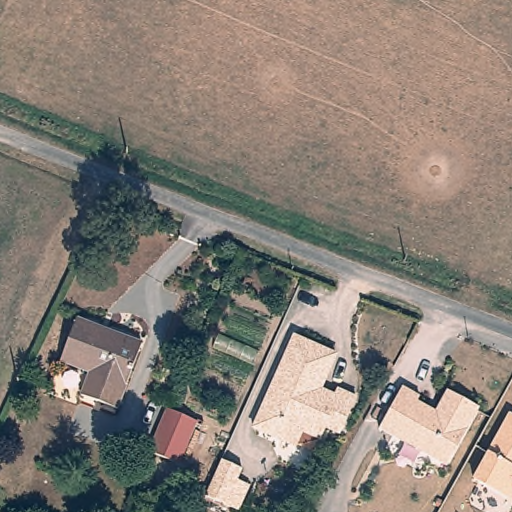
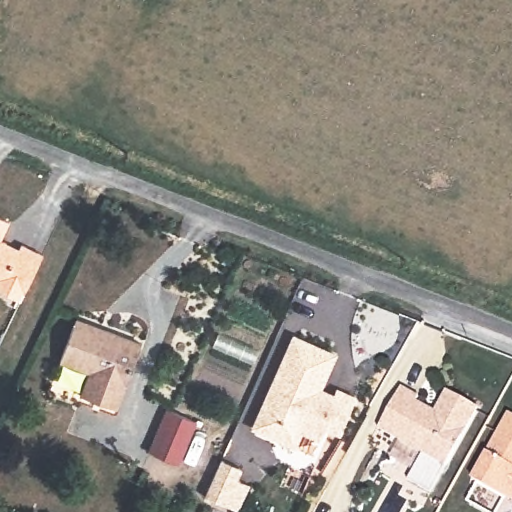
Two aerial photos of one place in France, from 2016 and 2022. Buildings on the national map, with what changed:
new [(10,220),(1,238),(7,241),(5,245),(18,251),(22,242),(43,252),(22,299),(0,289),(0,216),(10,220)]
unchanged [(146,349),(121,415),(85,400),(94,377),(64,366),(80,324),(146,349)]
unchanged [(357,400),(347,420),(341,435),(327,428),(321,440),(302,432),(296,447),(254,429),(295,337),(336,356),(321,391),(334,397),(337,391),(357,400)]
unchanged [(420,397),(418,403),(433,411),(445,392),(477,409),(447,465),(380,429),(401,385),(420,397)]
unchanged [(195,422),(177,465),(148,452),(166,410),(195,422)]
unchanged [(512,503),(472,480),(508,412),(512,415),(512,503)]
unchanged [(239,512),(233,512),(201,497),(220,460),(244,470),(239,481),(251,486),(239,512)]

